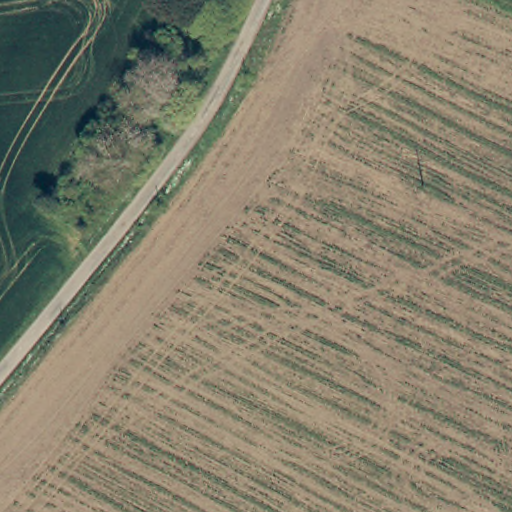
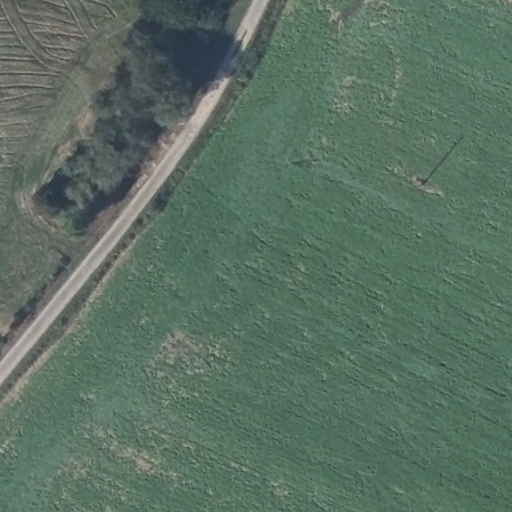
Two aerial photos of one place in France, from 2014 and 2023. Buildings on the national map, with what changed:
[]

